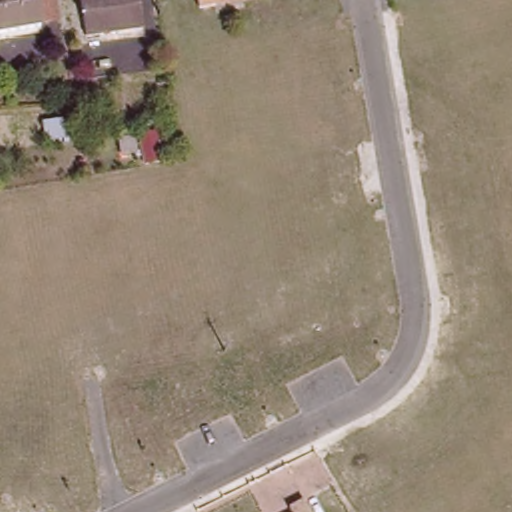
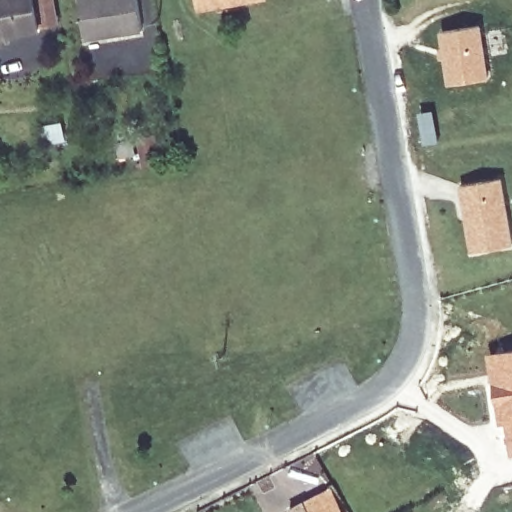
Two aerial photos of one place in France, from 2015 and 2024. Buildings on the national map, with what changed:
unchanged [(0,34),(0,0),(46,0),(49,22),(29,26),(29,29),(0,34)]
unchanged [(142,31),(85,39),(80,0),(138,0),(142,31)]
unchanged [(197,0),(254,0),(199,10),(197,0)]
new [(480,25),(488,78),(450,83),(443,31),(480,25)]
new [(512,242),(512,245),(473,252),(462,185),(501,178),(512,242)]
new [(494,383),(490,354),(496,353),(512,351),(512,453),(511,453),(506,421),(501,422),(497,404),(494,383)]
unchanged [(306,499),(312,512),(290,512),(288,507),(306,499)]

